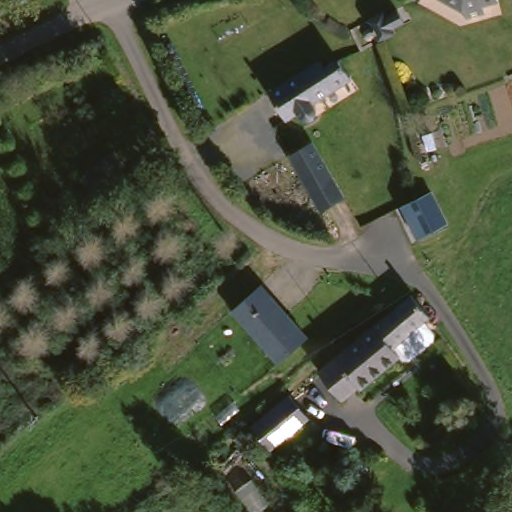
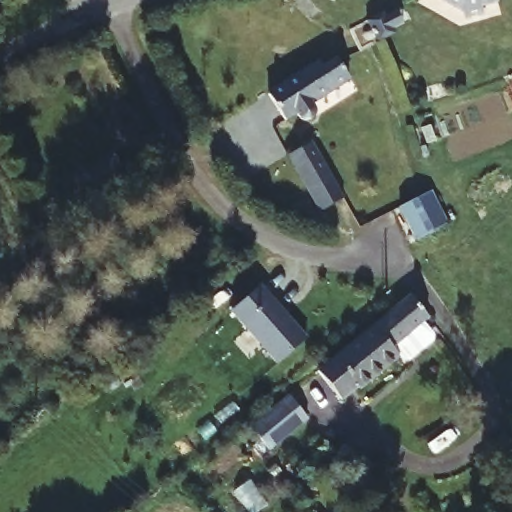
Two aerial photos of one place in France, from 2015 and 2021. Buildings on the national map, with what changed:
unchanged [(500,3),(486,7),(486,16),(468,22),(467,13),(445,0),(499,0),(500,3)]
unchanged [(368,18),(386,9),(388,13),(399,7),(406,22),(395,27),(397,31),(379,40),(368,18)]
unchanged [(312,99),(315,106),(316,110),(312,115),(306,118),(300,115),(298,110),(284,116),(268,92),(318,57),(320,64),(322,63),(337,57),(348,74),(312,99)]
unchanged [(306,135),(347,209),(324,222),(283,148),(306,135)]
unchanged [(129,170),(92,194),(79,175),(116,151),(129,170)]
unchanged [(421,197),(436,228),(420,236),(420,225),(406,205),(405,202),(418,197),(421,197)]
unchanged [(270,298),(272,296),(306,341),(275,365),(232,308),(261,286),(270,298)]
unchanged [(393,310),(409,296),(427,319),(421,324),(432,336),(431,342),(408,363),(401,362),(398,359),(359,391),(357,388),(341,401),(317,373),(393,310)]
unchanged [(285,392),(305,416),(269,447),(248,423),(285,392)]

